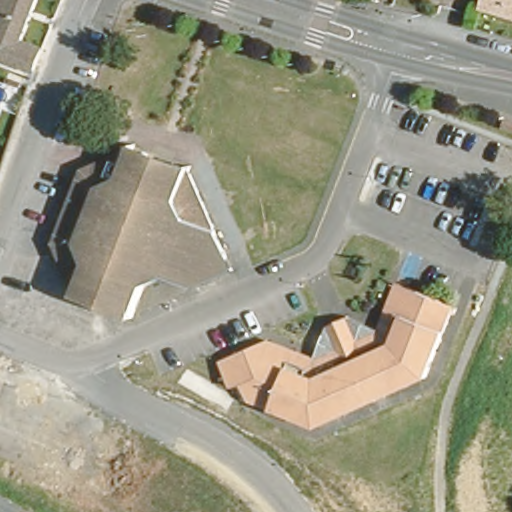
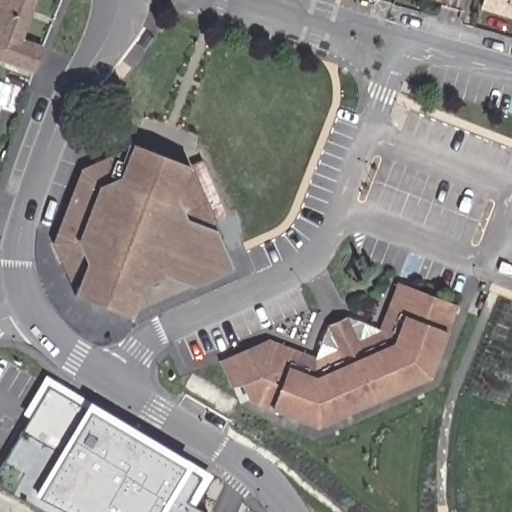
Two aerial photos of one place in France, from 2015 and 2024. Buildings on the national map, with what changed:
unchanged [(44,44),(35,65),(0,52),(0,0),(35,0),(21,35),(44,44)]
unchanged [(482,6),(483,0),(512,0),(512,15),(482,6)]
unchanged [(505,127),(507,120),(512,121),(512,129),(505,127)]
unchanged [(219,261),(193,272),(166,261),(145,270),(133,302),(75,281),(81,268),(73,265),(55,228),(76,176),(84,174),(86,167),(80,164),(84,156),(131,135),(131,138),(137,141),(139,139),(140,137),(142,136),(145,136),(146,138),(148,139),(149,141),(149,144),(149,146),(170,154),(172,151),(174,150),(176,150),(178,151),(180,152),(182,154),(182,156),(182,159),(186,157),(227,241),(233,254),(219,261)]
unchanged [(233,382),(222,357),(269,336),(312,352),(317,343),(328,320),(349,310),(381,325),(400,278),(410,282),(391,333),(318,366),(271,348),(250,356),(242,376),(233,382)]
unchanged [(271,348),(318,366),(391,333),(410,282),(456,300),(429,371),(317,420),(252,394),(242,376),(250,356),(271,348)]
new [(0,467),(49,386),(90,411),(39,497),(69,512),(43,512),(0,488),(0,467)]
new [(39,497),(90,411),(184,468),(158,512),(69,512),(39,497)]
new [(184,468),(202,479),(188,502),(204,512),(158,512),(184,468)]

